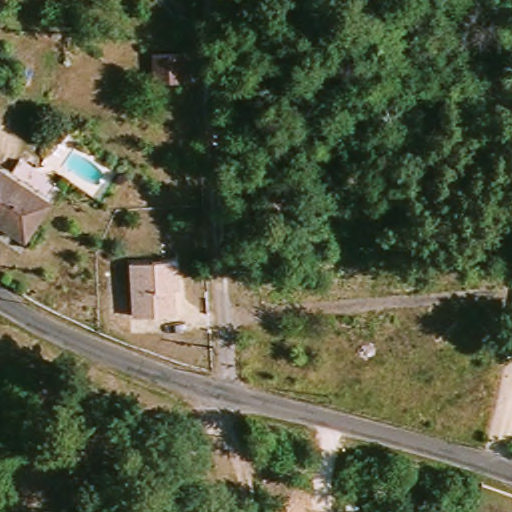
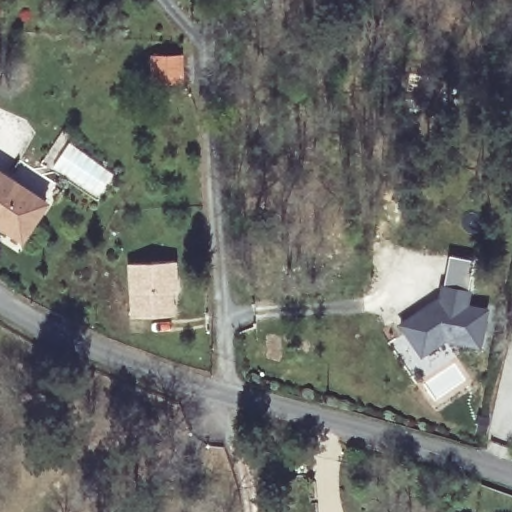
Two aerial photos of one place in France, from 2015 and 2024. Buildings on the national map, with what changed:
unchanged [(149,61),(180,62),(180,89),(149,88),(149,61)]
unchanged [(46,208),(22,243),(0,229),(0,177),(46,208)]
unchanged [(178,259),(180,287),(174,288),(176,316),(133,317),(130,262),(178,259)]
new [(430,312),(439,305),(442,305),(444,291),(472,295),(470,310),(490,312),(486,349),(450,345),(426,362),(402,332),(422,318),(430,312)]

